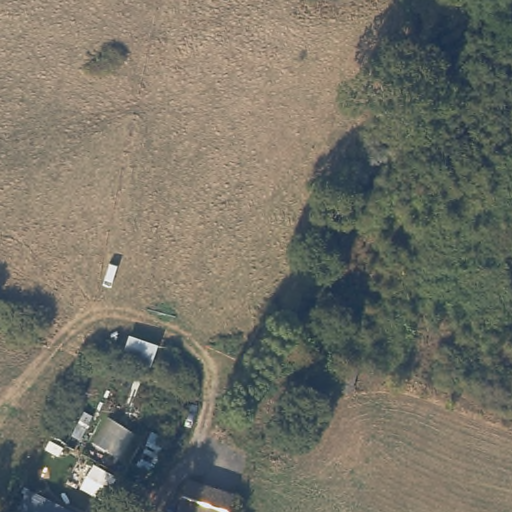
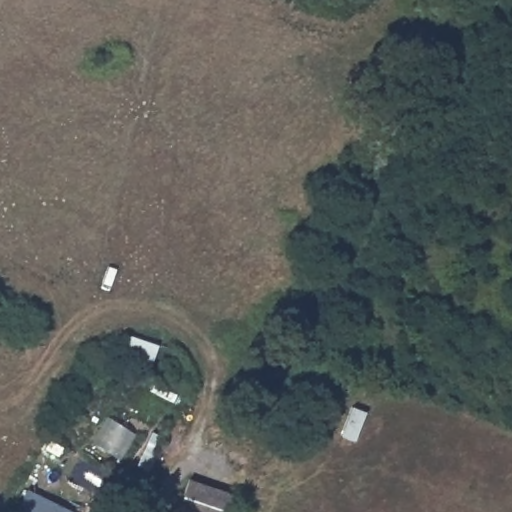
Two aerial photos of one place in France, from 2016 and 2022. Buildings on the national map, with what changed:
unchanged [(122,356),(132,332),(159,342),(151,366),(122,356)]
unchanged [(240,492),(235,512),(171,512),(171,510),(178,512),(188,478),(240,492)]
unchanged [(25,497),(45,503),(40,512),(18,512),(25,497)]

